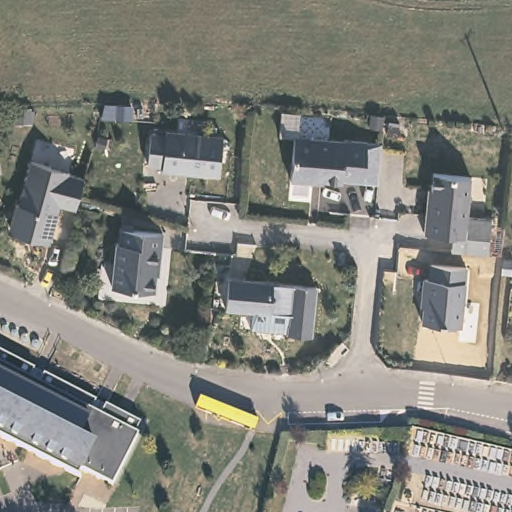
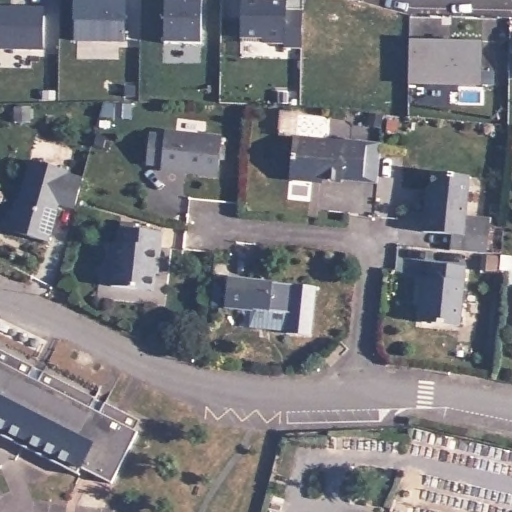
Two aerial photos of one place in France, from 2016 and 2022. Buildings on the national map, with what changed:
new [(74,0),(125,0),(124,23),(123,23),(124,42),(74,41),(74,21),(74,0)]
new [(202,0),(200,44),(163,43),(163,0),(202,0)]
new [(287,0),(287,9),(302,9),(300,47),(282,47),(282,45),(262,44),(262,41),(240,38),(239,0),(287,0)]
new [(44,50),(0,49),(0,6),(44,7),(44,50)]
new [(409,39),(483,40),(481,87),(409,85),(409,39)]
unchanged [(222,175),(217,174),(165,169),(166,165),(151,163),(154,133),(169,135),(169,130),(215,135),(225,137),(222,175)]
unchanged [(364,182),(341,181),(312,179),(312,181),(289,179),(293,136),(344,141),(366,141),(364,182)]
unchanged [(8,221),(15,199),(19,200),(32,157),(51,164),(69,169),(68,172),(84,177),(81,186),(74,207),(59,203),(58,208),(52,210),(49,219),(52,225),(48,240),(28,234),(6,227),(8,221)]
unchanged [(451,239),(428,237),(433,174),(473,176),(471,213),(494,215),(489,254),(451,249),(451,239)]
unchanged [(166,232),(163,265),(160,265),(157,291),(115,286),(120,243),(123,243),(124,228),(166,232)]
unchanged [(469,266),(464,325),(427,322),(429,296),(427,295),(428,277),(433,278),(434,263),(469,266)]
unchanged [(252,313),(224,310),(214,329),(203,324),(213,304),(217,275),(318,286),(314,337),(292,336),(291,332),(252,328),(252,313)]
unchanged [(114,484),(84,471),(0,430),(0,358),(145,429),(114,484)]

